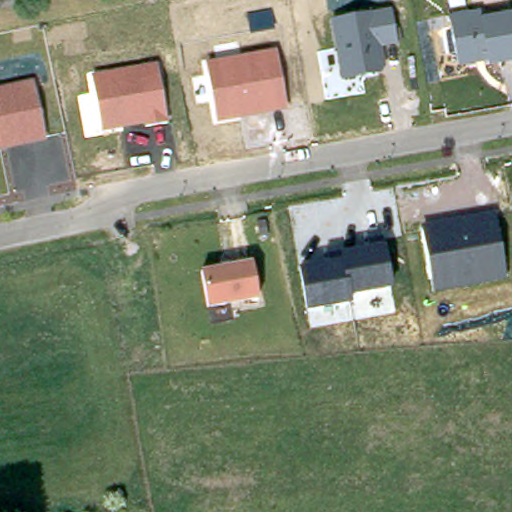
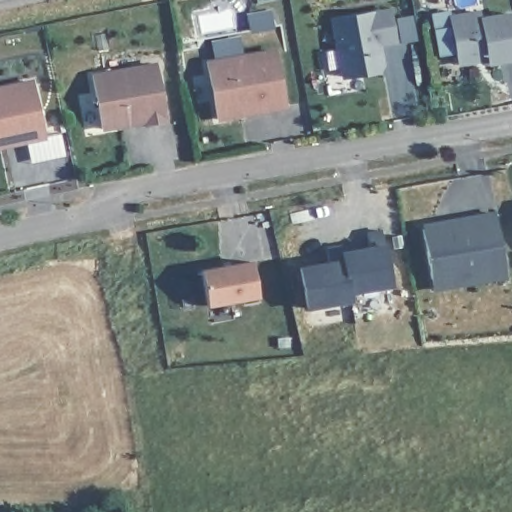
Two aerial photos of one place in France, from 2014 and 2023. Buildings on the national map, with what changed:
unchanged [(400,44),(382,47),(385,69),(342,79),(333,16),(396,8),(400,44)]
unchanged [(489,66),(487,59),(458,64),(448,15),(480,10),(481,16),(512,11),(512,60),(489,66)]
unchanged [(290,109),(217,123),(207,59),(278,46),(290,109)]
unchanged [(166,119),(102,130),(94,74),(161,60),(166,119)]
unchanged [(0,149),(0,85),(34,77),(45,138),(0,149)]
unchanged [(435,291),(422,223),(493,211),(506,278),(435,291)]
unchanged [(327,263),(323,249),(341,244),(343,252),(369,246),(367,231),(383,229),(391,285),(351,291),(353,302),(309,309),(302,268),(327,263)]
unchanged [(259,296),(209,306),(202,269),(251,260),(259,296)]

